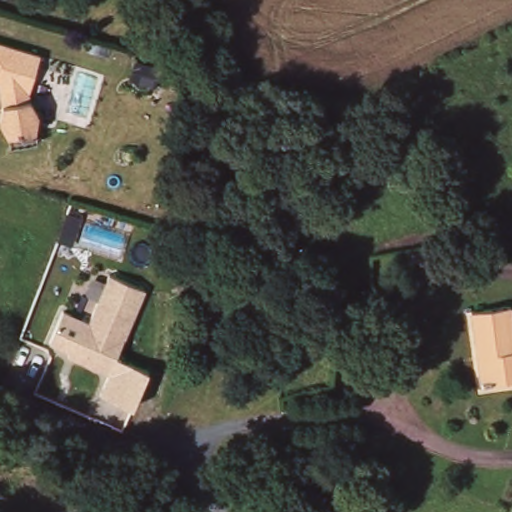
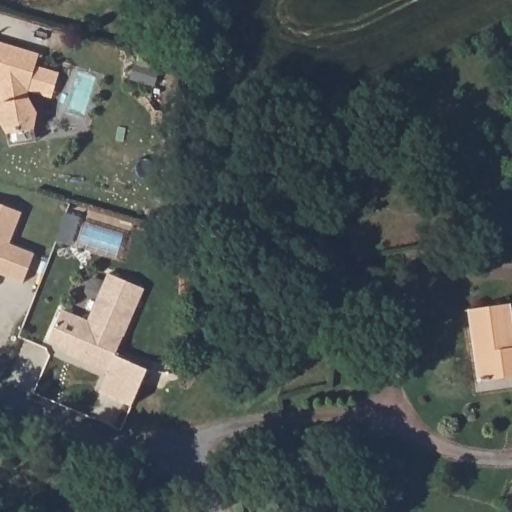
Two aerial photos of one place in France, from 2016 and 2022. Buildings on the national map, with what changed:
unchanged [(32,130),(2,134),(0,116),(0,44),(35,52),(32,130)]
new [(12,243),(35,252),(23,283),(0,275),(0,204),(23,211),(12,243)]
unchanged [(141,288),(105,373),(45,343),(56,310),(85,320),(103,274),(141,288)]
unchanged [(476,380),(475,374),(471,310),(512,307),(512,378),(476,380)]
unchanged [(113,354),(149,369),(132,406),(96,391),(105,373),(113,354)]

